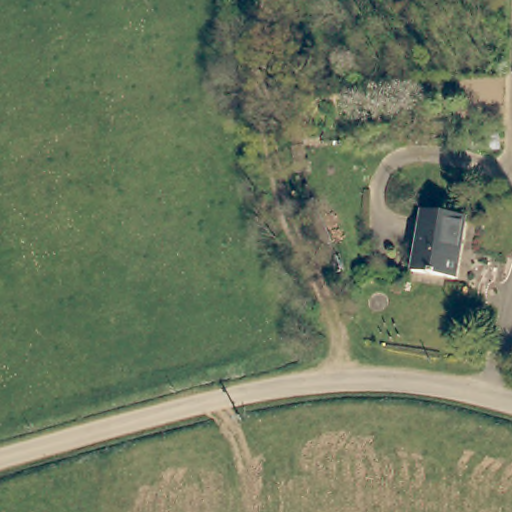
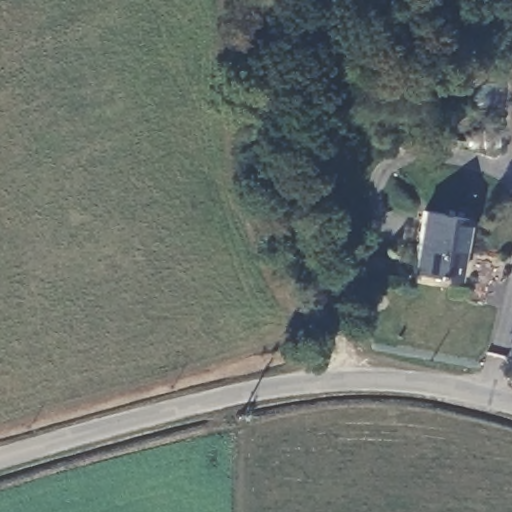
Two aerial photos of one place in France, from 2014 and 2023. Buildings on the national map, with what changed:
unchanged [(419,212),(464,219),(456,280),(409,274),(419,212)]

